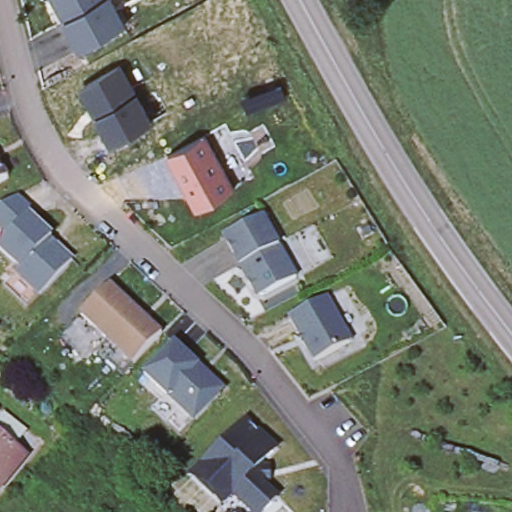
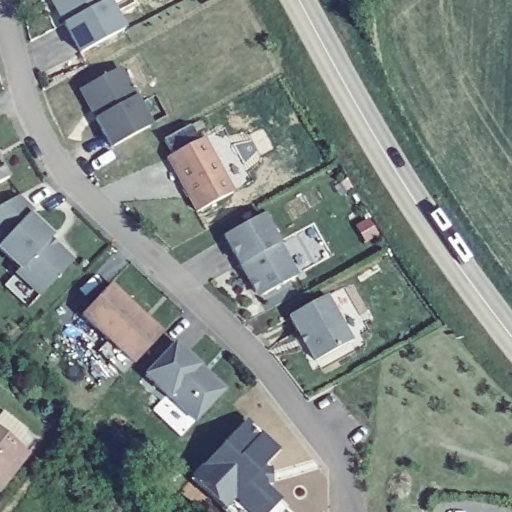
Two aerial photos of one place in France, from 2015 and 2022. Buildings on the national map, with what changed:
unchanged [(124,27),(80,52),(63,22),(68,19),(62,9),(55,7),(51,0),(109,0),(124,27)]
unchanged [(80,94),(82,87),(117,67),(149,125),(109,147),(94,119),(88,109),(80,94)]
unchanged [(203,138),(232,192),(195,212),(166,157),(203,138)]
unchanged [(0,180),(0,165),(6,177),(0,180)]
unchanged [(50,235),(46,240),(52,246),(55,244),(70,260),(37,296),(14,272),(17,268),(0,250),(0,242),(27,214),(50,235)]
unchanged [(223,236),(261,215),(295,277),(261,296),(256,293),(247,277),(240,266),(223,236)]
unchanged [(108,284),(160,333),(131,364),(80,315),(108,284)]
unchanged [(326,296),(351,341),(314,362),(288,317),(326,296)]
unchanged [(197,367),(207,377),(218,387),(219,395),(191,422),(142,376),(173,343),(197,367)]
unchanged [(25,437),(12,452),(24,462),(0,492),(0,420),(2,418),(25,437)]
unchanged [(265,467),(265,472),(273,472),(273,484),(265,484),(265,487),(281,502),(272,512),(250,512),(235,498),(225,510),(195,481),(250,422),(280,452),(265,467)]
unchanged [(225,510),(235,498),(250,512),(225,512),(223,511),(225,510)]
unchanged [(286,512),(272,512),(281,502),(288,510),(286,512)]

